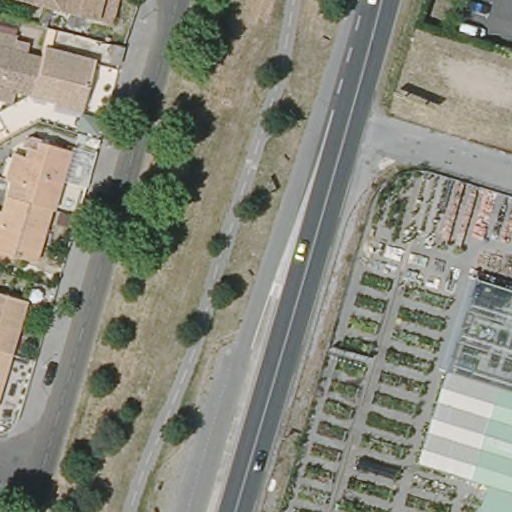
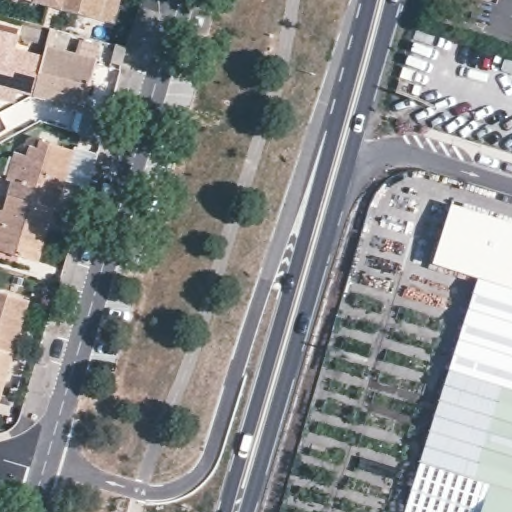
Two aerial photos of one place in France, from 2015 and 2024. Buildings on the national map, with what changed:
unchanged [(49,6),(23,0),(50,0),(49,6)]
unchanged [(109,23),(49,6),(50,0),(124,0),(117,25),(109,23)]
unchanged [(128,48),(126,55),(124,55),(120,66),(110,63),(116,45),(128,48)]
unchanged [(32,97),(0,88),(0,46),(43,57),(32,97)]
unchanged [(55,102),(32,97),(43,57),(45,48),(98,62),(84,113),(65,108),(54,105),(55,102)]
unchanged [(12,181),(20,154),(26,155),(32,157),(36,148),(44,150),(47,142),(78,152),(61,210),(59,209),(14,196),(17,182),(12,181)]
unchanged [(0,249),(0,245),(14,196),(59,209),(43,262),(0,249)]
new [(512,224),(512,393),(448,373),(479,279),(433,264),(452,205),(512,224)]
unchanged [(13,354),(0,350),(0,292),(29,300),(13,354)]
unchanged [(0,396),(0,350),(13,354),(0,396)]
unchanged [(418,464),(445,372),(512,393),(512,512),(480,512),(487,489),(418,464)]
new [(487,489),(480,512),(405,512),(419,465),(487,489)]

